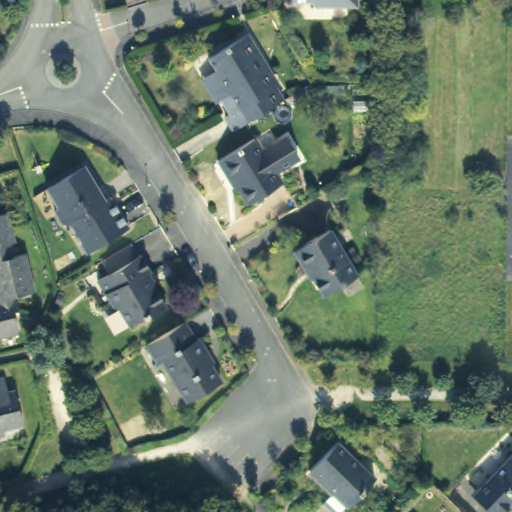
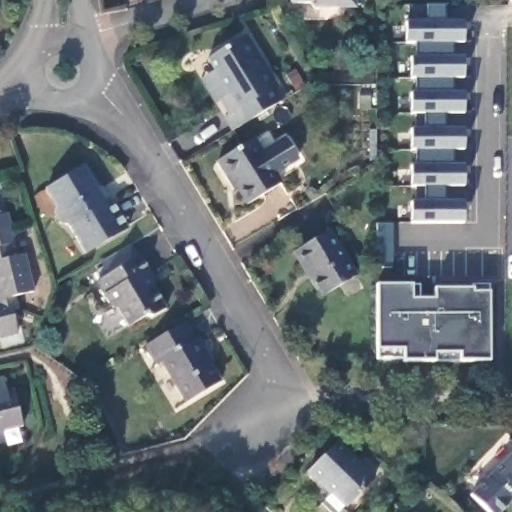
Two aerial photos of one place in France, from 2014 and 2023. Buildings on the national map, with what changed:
unchanged [(310,7),(303,1),(292,1),(292,0),(356,0),(355,8),(310,7)]
new [(409,202),(413,202),(412,186),(409,186),(409,166),(415,166),(415,151),(408,151),(409,128),(413,129),(412,113),(409,113),(408,92),(415,93),(415,79),(409,79),(409,57),(415,56),(415,44),(405,44),(406,22),(407,4),(426,4),(445,5),(444,21),(464,21),(465,41),(453,41),(453,58),(464,59),(464,79),(453,78),(453,92),(466,93),(466,114),(445,114),(446,129),(465,130),(466,149),(452,149),(452,166),(466,166),(465,187),(443,186),(443,203),(465,202),(465,223),(409,224),(409,202)]
unchanged [(222,118),(227,115),(219,100),(225,96),(205,61),(244,38),(264,73),(260,76),(277,105),(229,134),(222,118)]
unchanged [(284,143),(295,161),(272,176),(278,187),(244,208),(229,183),(226,185),(214,165),(251,142),(260,156),(284,143)]
unchanged [(70,224),(64,223),(57,213),(58,204),(49,189),(86,166),(99,188),(96,191),(103,204),(113,199),(130,227),(86,253),(70,224)]
unchanged [(0,216),(11,214),(21,257),(30,255),(37,293),(18,297),(20,311),(11,312),(15,334),(0,338),(0,213),(0,216)]
unchanged [(293,251),(331,228),(357,273),(322,294),(306,267),(303,268),(293,251)]
unchanged [(152,274),(148,277),(167,309),(153,317),(147,316),(128,327),(118,309),(113,307),(99,282),(110,275),(102,261),(111,255),(131,244),(139,258),(141,256),(152,274)]
new [(375,284),(411,284),(411,300),(433,300),(433,289),(472,288),(472,292),(488,292),(489,362),(403,364),(403,350),(377,350),(375,284)]
unchanged [(194,340),(197,338),(208,353),(205,355),(220,381),(186,401),(163,362),(158,365),(146,345),(184,322),(194,340)]
unchanged [(7,379),(10,393),(16,392),(23,426),(5,431),(6,437),(0,439),(0,380),(7,379)]
unchanged [(326,500),(332,495),(308,470),(335,443),(373,480),(345,508),(340,512),(338,512),(326,500)]
unchanged [(485,474),(512,448),(512,500),(511,501),(509,498),(494,512),(493,512),(470,489),(485,474)]

